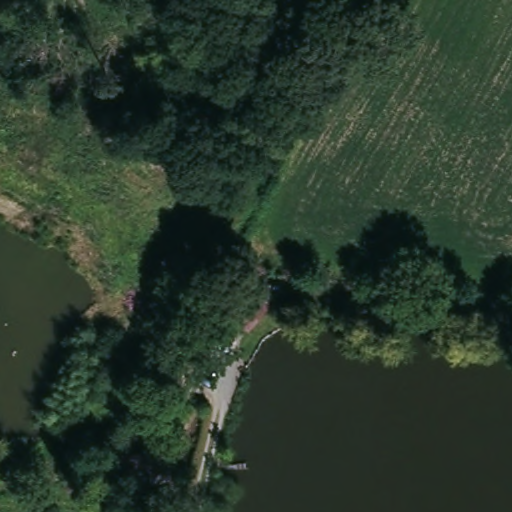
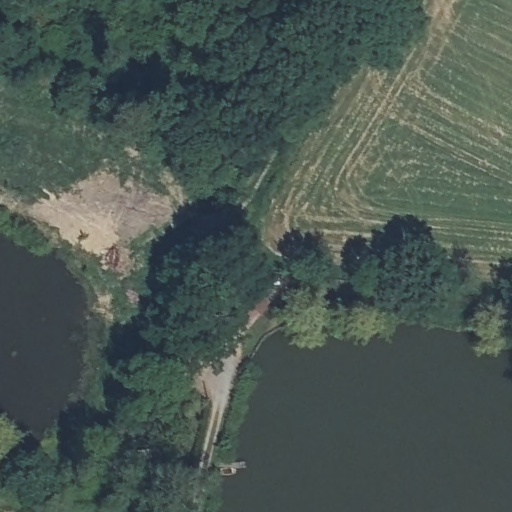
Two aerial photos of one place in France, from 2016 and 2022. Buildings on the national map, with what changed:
unchanged [(175,477),(142,481),(136,450),(171,446),(175,477)]

